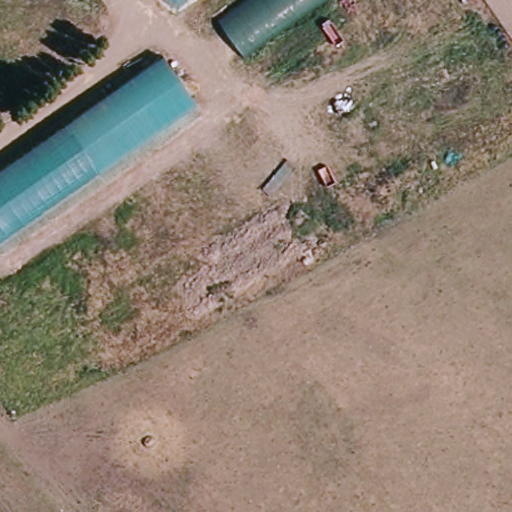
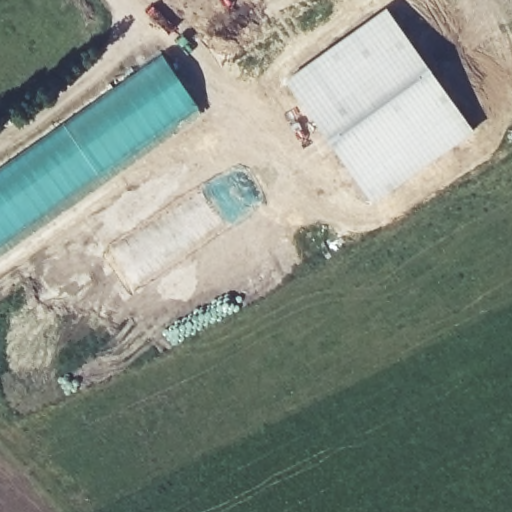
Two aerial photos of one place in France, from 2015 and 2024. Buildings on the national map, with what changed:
unchanged [(241,0),(324,0),(244,57),(215,19),(241,0)]
new [(386,7),(475,130),(372,202),(286,80),(386,7)]
unchanged [(0,248),(0,171),(159,58),(195,110),(0,248)]

